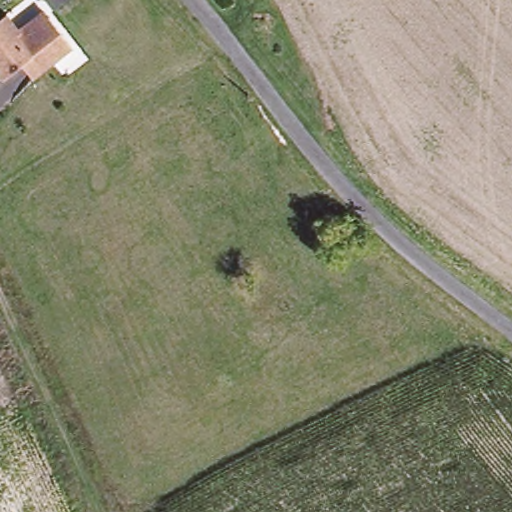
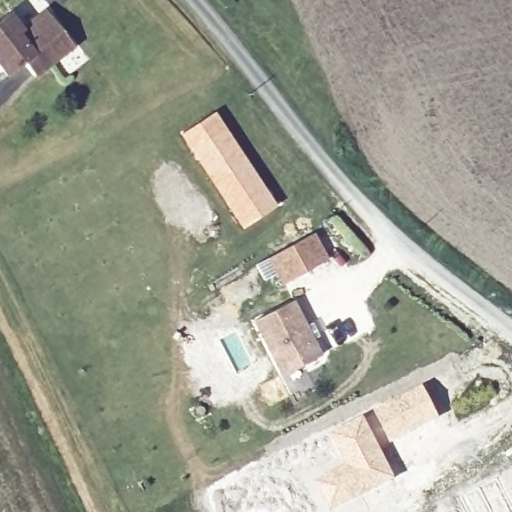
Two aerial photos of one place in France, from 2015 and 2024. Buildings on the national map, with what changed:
unchanged [(0,10),(2,8),(16,25),(30,13),(41,5),(44,10),(67,39),(30,70),(19,57),(10,64),(1,70),(0,69),(0,10)]
new [(275,207),(244,227),(182,134),(214,113),(275,207)]
new [(330,259),(281,284),(267,259),(313,233),(330,259)]
new [(321,356),(280,378),(252,322),(294,301),(321,356)]
new [(422,385),(440,417),(389,444),(372,412),(422,385)]
new [(345,465),(328,433),(364,414),(395,478),(333,512),(328,512),(313,482),(345,465)]

